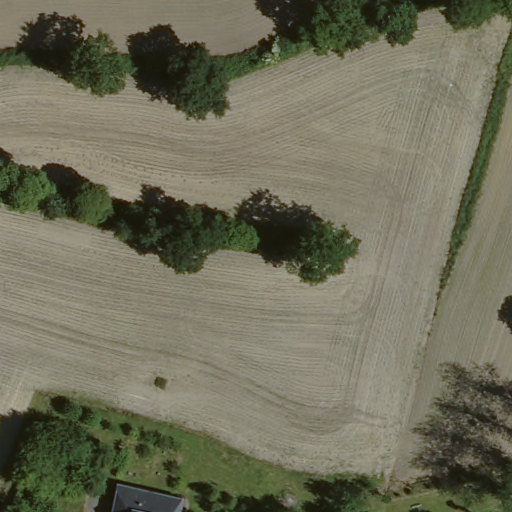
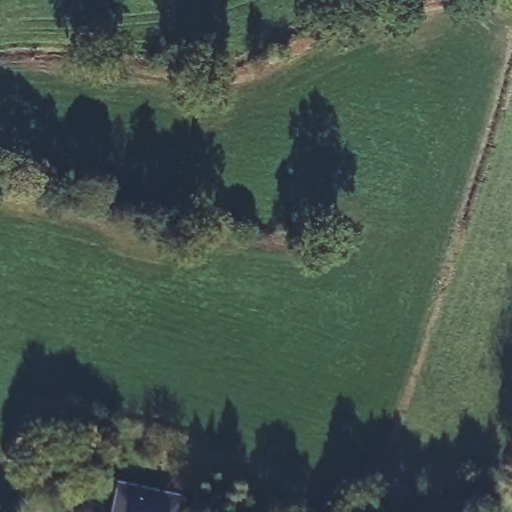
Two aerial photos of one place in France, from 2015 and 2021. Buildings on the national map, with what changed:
unchanged [(124,481),(176,493),(182,495),(189,497),(186,512),(116,512),(124,481)]

